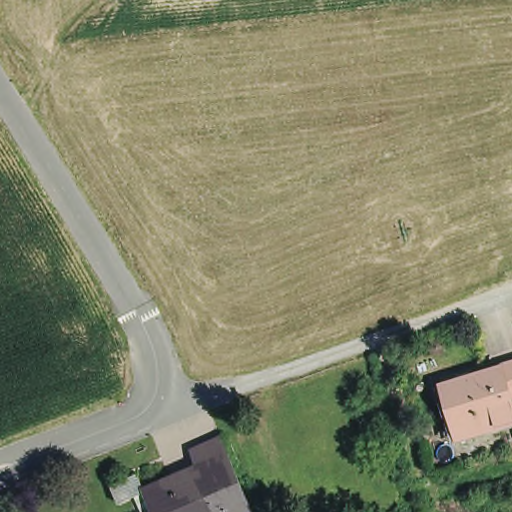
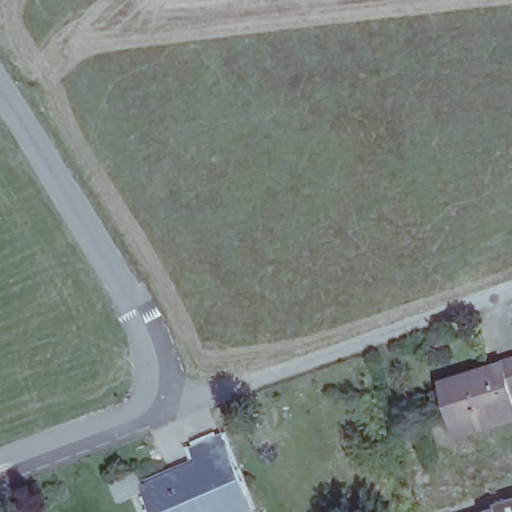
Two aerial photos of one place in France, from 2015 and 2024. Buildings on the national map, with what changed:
unchanged [(457,435),(441,382),(472,372),(474,376),(504,367),(502,363),(512,360),(512,418),(457,435)]
unchanged [(162,512),(150,484),(200,462),(194,447),(222,435),(252,505),(235,512),(162,512)]
new [(512,497),(512,512),(488,512),(486,505),(512,497)]

